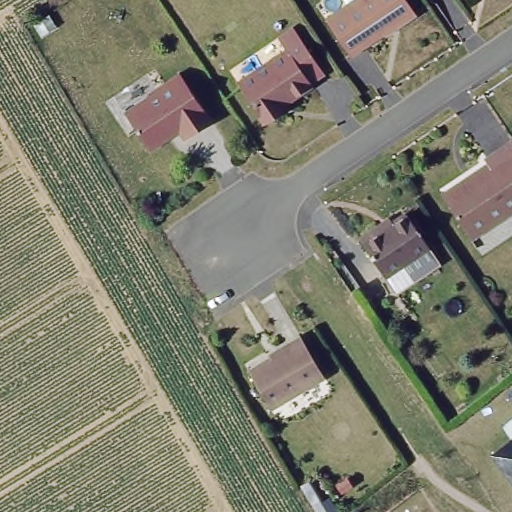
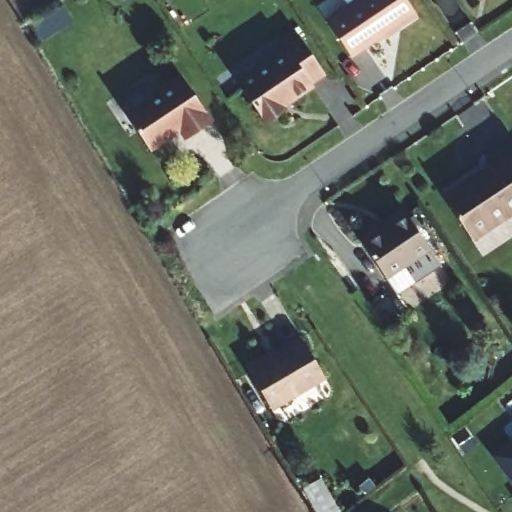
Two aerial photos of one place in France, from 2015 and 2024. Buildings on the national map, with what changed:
unchanged [(396,22),(395,20),(349,51),(325,15),(348,0),(408,0),(414,10),(396,22)]
unchanged [(291,46),(282,34),(298,24),(328,69),(314,79),(315,80),(284,101),(287,106),(268,119),(242,79),(291,46)]
unchanged [(214,121),(188,139),(181,128),(171,134),(173,136),(153,150),(128,113),(154,95),(153,93),(183,74),(214,121)]
unchanged [(512,209),(471,233),(445,187),(493,159),(490,154),(512,142),(512,209)]
unchanged [(382,264),(363,228),(384,215),(387,220),(412,207),(429,238),(439,255),(411,271),(392,281),(382,264)]
unchanged [(291,347),(289,344),(304,336),(328,378),(274,409),(251,369),(291,347)]
unchanged [(512,438),(512,480),(492,454),(512,438)]

